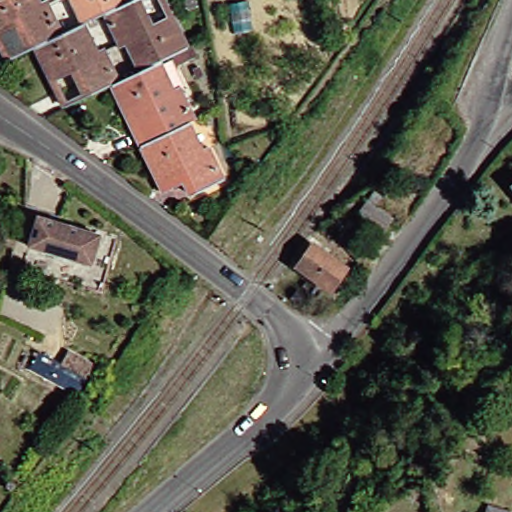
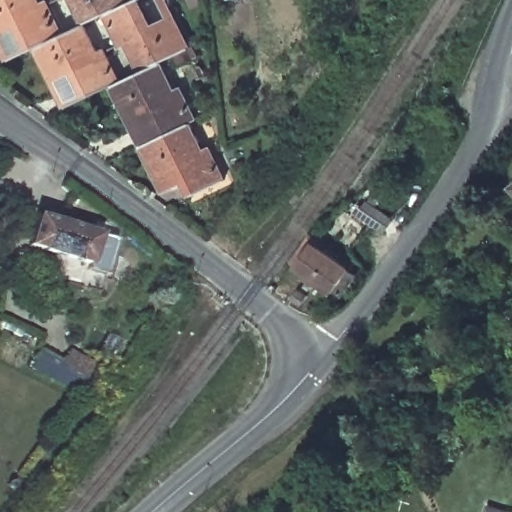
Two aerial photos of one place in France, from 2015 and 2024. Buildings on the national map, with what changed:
unchanged [(29,51),(1,64),(0,61),(0,0),(30,0),(35,11),(40,8),(55,38),(29,51)]
unchanged [(55,1),(55,0),(58,0),(55,1)]
unchanged [(125,5),(99,17),(78,27),(64,0),(122,0),(125,5)]
unchanged [(152,66),(134,74),(120,45),(114,47),(99,17),(125,5),(130,3),(137,0),(155,0),(165,21),(180,52),(152,66)]
unchanged [(29,51),(55,38),(77,28),(90,58),(96,56),(111,85),(104,89),(79,101),(58,111),(57,110),(43,81),(29,51)]
unchanged [(134,74),(152,66),(166,97),(173,93),(188,123),(180,127),(134,150),(104,89),(111,85),(134,74)]
unchanged [(194,155),(201,152),(216,184),(183,200),(175,185),(154,195),(134,150),(180,127),(194,155)]
unchanged [(506,190),(512,185),(512,199),(506,190)]
unchanged [(374,199),(365,212),(384,224),(377,234),(352,217),(367,194),(374,199)]
unchanged [(82,266),(22,249),(31,220),(90,238),(82,266)]
unchanged [(322,296),(287,271),(305,247),(339,273),(322,296)]
unchanged [(84,365),(78,377),(54,364),(60,352),(84,365)]

